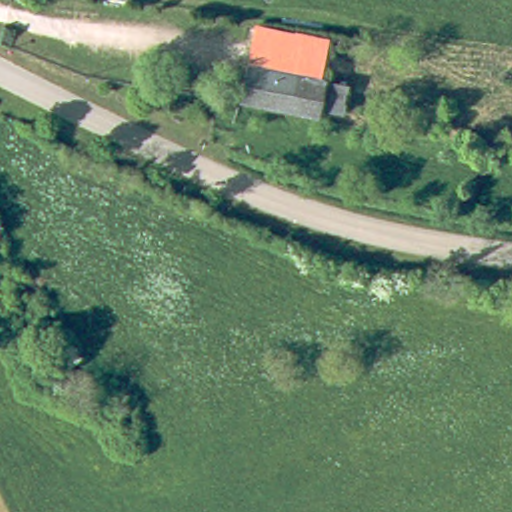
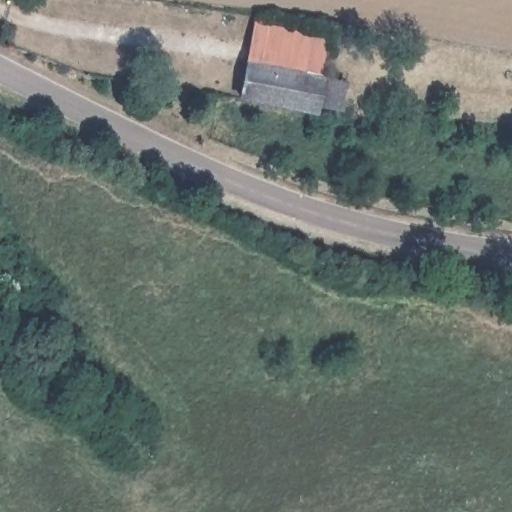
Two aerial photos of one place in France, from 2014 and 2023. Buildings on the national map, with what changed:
unchanged [(327,37),(322,79),(345,83),(342,114),(318,111),(317,119),(237,102),(253,23),(327,37)]

